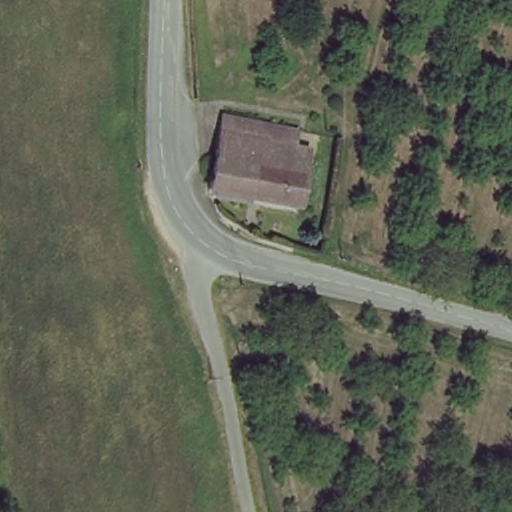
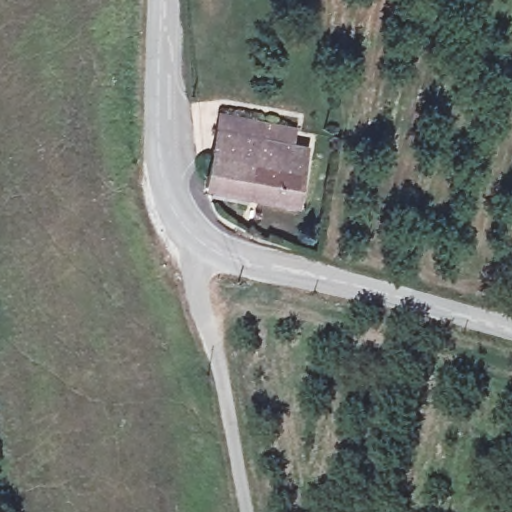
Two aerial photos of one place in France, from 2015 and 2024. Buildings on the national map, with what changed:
unchanged [(300,171),(210,152),(213,108),(308,127),(300,171)]
unchanged [(210,152),(300,171),(294,203),(245,191),(240,221),(210,209),(207,195),(210,152)]

